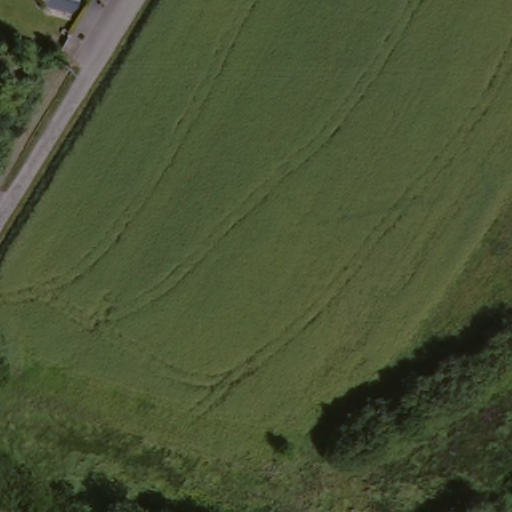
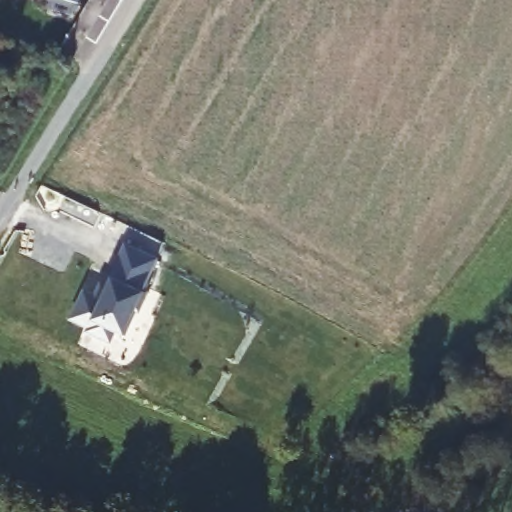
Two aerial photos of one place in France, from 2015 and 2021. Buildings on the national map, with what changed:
new [(107,290),(112,279),(111,278),(126,245),(159,260),(144,292),(146,293),(139,310),(136,309),(125,333),(115,328),(110,341),(90,332),(91,328),(74,320),(85,294),(96,299),(102,287),(107,290)]

